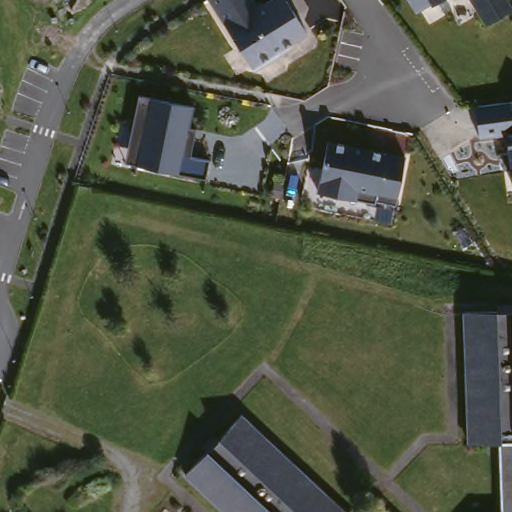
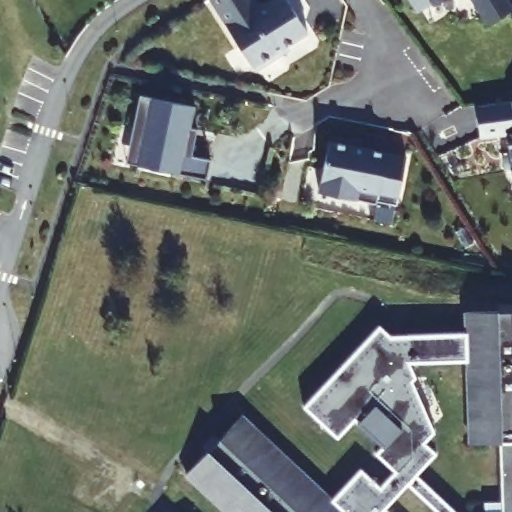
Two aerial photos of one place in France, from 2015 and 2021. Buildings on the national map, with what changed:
unchanged [(259,5),(269,0),(289,0),(312,35),(255,69),(208,0),(255,0),(259,5)]
unchanged [(432,7),(431,6),(416,15),(407,0),(444,0),(432,7)]
unchanged [(510,12),(485,27),(468,0),(503,0),(510,12)]
unchanged [(194,102),(186,152),(213,157),(209,178),(128,162),(140,98),(194,102)]
unchanged [(512,102),(512,180),(505,132),(480,136),(476,106),(512,102)]
unchanged [(400,199),(380,194),(379,196),(322,184),(332,136),(373,145),(388,148),(409,152),(400,199)]
unchanged [(465,444),(461,312),(512,311),(512,512),(497,512),(495,443),(465,444)]
new [(340,512),(328,501),(361,470),(380,488),(395,470),(376,452),(383,443),(353,418),(337,436),(306,406),(379,326),(403,348),(415,376),(411,381),(435,430),(422,440),(436,454),(380,509),(378,512),(340,512)]
unchanged [(237,416),(340,512),(221,512),(182,475),(237,416)]
unchanged [(384,512),(378,512),(380,509),(384,512)]

